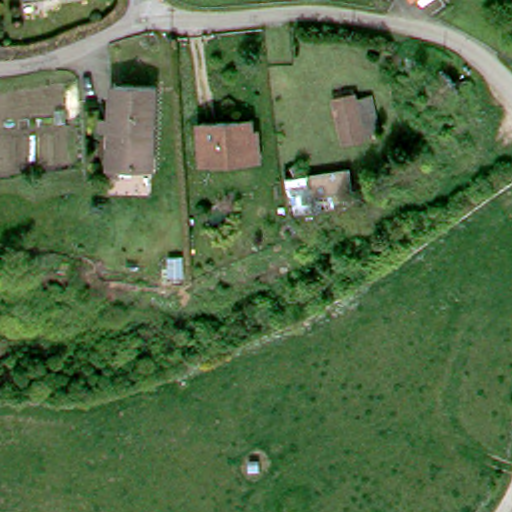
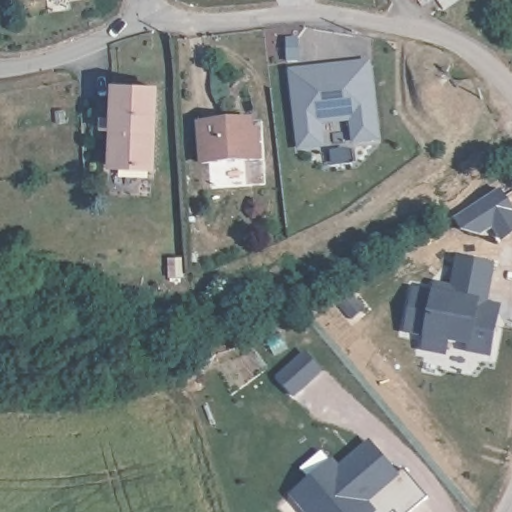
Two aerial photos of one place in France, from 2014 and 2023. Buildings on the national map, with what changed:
new [(324,125),(326,148),(297,150),(289,70),(372,60),(381,141),(352,144),(350,121),(324,125)]
unchanged [(156,94),(152,173),(112,171),(114,92),(156,94)]
demolished [(366,134),(345,138),(337,100),(359,96),(366,134)]
unchanged [(257,124),(259,144),(264,144),(265,163),(206,168),(203,128),(257,124)]
demolished [(335,203),(335,209),(292,217),(286,182),(350,171),(354,200),(335,203)]
new [(494,326),(489,355),(466,350),(468,344),(446,339),(444,352),(421,348),(424,334),(404,330),(412,289),(432,293),(434,284),(451,288),(457,258),(491,265),(483,303),(491,305),(498,307),(494,326)]
new [(323,372),(297,397),(280,378),(308,354),(323,372)]
new [(430,497),(413,512),(375,512),(371,508),(367,512),(309,512),(296,496),(314,481),(329,482),(372,444),(399,475),(406,469),(430,497)]

